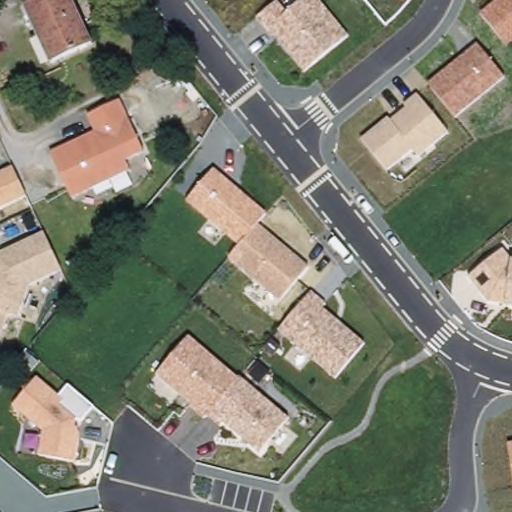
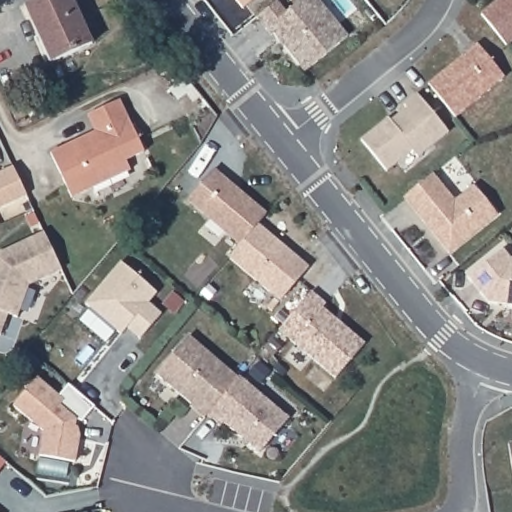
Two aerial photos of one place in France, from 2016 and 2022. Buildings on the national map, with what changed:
unchanged [(42,0),(71,0),(91,45),(50,64),(25,8),(42,0)]
new [(236,0),(254,0),(243,9),(236,0)]
unchanged [(305,74),(258,19),(278,1),(288,13),(304,0),(317,0),(349,36),(305,74)]
unchanged [(506,47),(478,13),(495,0),(512,0),(512,43),(506,47)]
unchanged [(457,119),(426,84),(478,44),(507,80),(457,119)]
unchanged [(421,159),(412,150),(388,172),(359,140),(387,117),(389,121),(403,108),(400,106),(414,93),(449,134),(421,159)]
unchanged [(99,128),(91,111),(123,97),(146,149),(129,157),(133,167),(74,194),(54,149),(99,128)]
unchanged [(0,210),(0,174),(13,168),(26,197),(0,210)]
unchanged [(188,200),(214,169),(267,214),(258,225),(239,246),(188,200)]
new [(404,197),(433,174),(454,201),(474,186),(497,214),(449,253),(431,231),(424,222),(404,197)]
unchanged [(279,302),(227,259),(258,225),(310,267),(279,302)]
unchanged [(28,287),(16,321),(5,318),(0,334),(0,250),(44,231),(59,271),(28,287)]
unchanged [(508,307),(489,304),(468,277),(504,249),(512,260),(512,261),(512,308),(508,307)]
new [(120,262),(156,292),(148,303),(161,314),(140,338),(127,327),(121,334),(85,303),(120,262)]
unchanged [(334,381),(275,331),(310,291),(327,305),(323,310),(364,344),(334,381)]
unchanged [(260,456),(213,417),(207,421),(155,376),(190,335),(291,419),(260,456)]
unchanged [(83,422),(77,421),(75,427),(81,435),(76,463),(37,456),(42,429),(11,405),(38,378),(59,395),(69,384),(95,407),(83,422)]
unchanged [(508,441),(512,441),(512,467),(508,441)]

